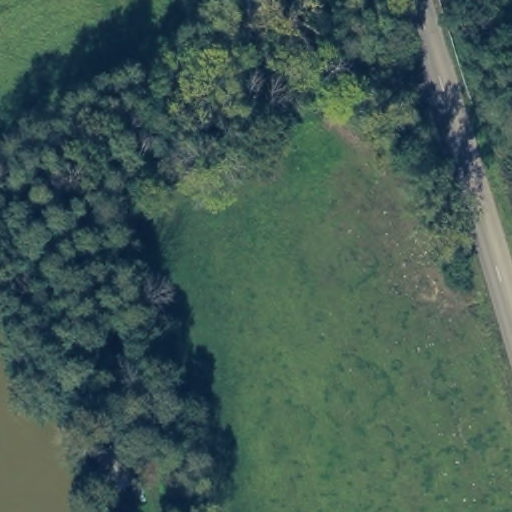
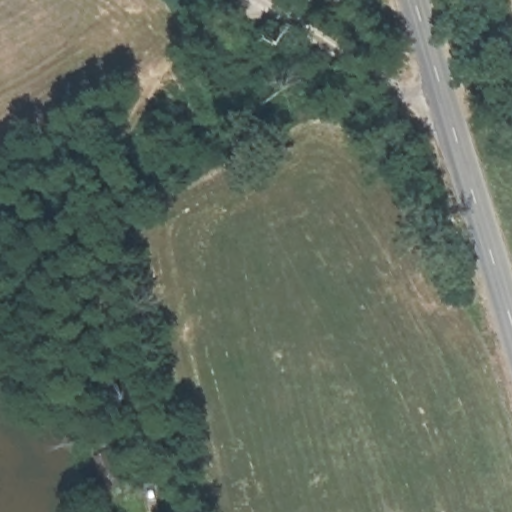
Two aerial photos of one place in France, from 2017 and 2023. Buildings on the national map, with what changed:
unchanged [(152,402),(135,406),(113,359),(136,347),(152,402)]

